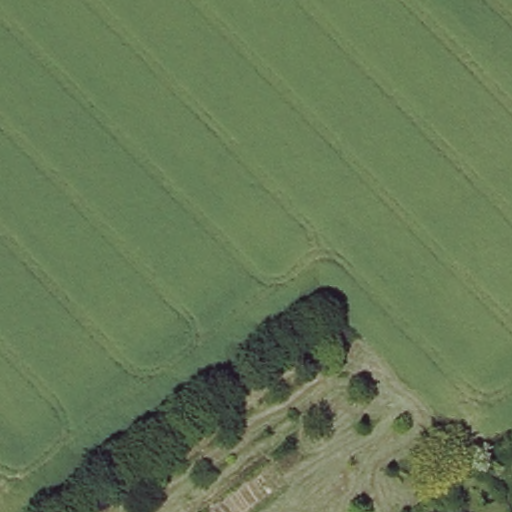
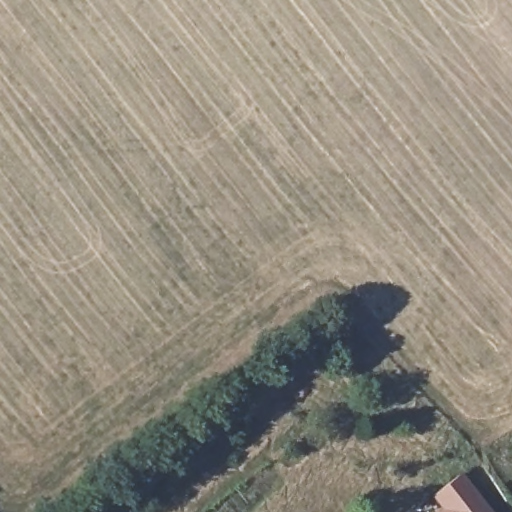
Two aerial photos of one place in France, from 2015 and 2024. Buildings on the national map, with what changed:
new [(431,495),(462,472),(492,512),(438,512),(442,509),(431,495)]

